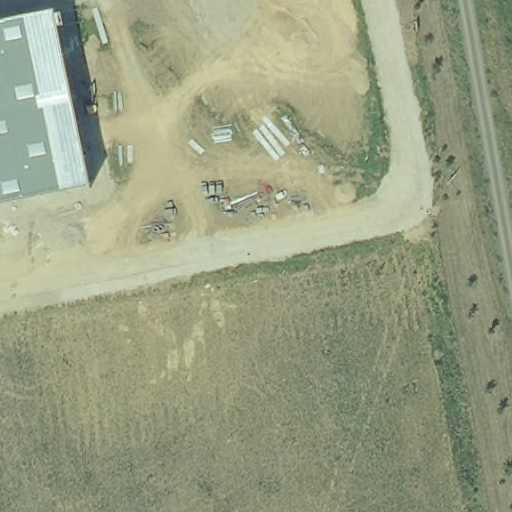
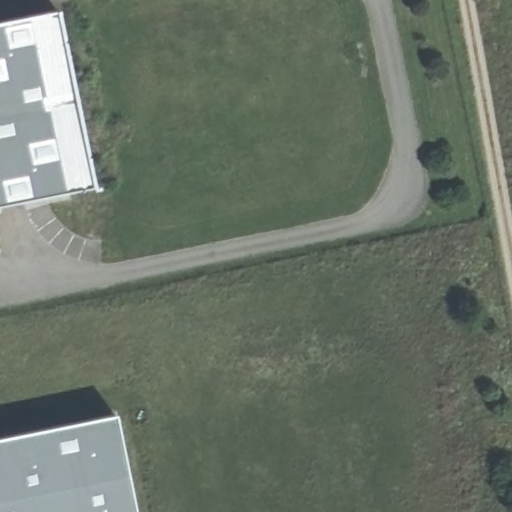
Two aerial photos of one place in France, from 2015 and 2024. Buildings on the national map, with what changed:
unchanged [(89,184),(0,203),(0,22),(54,11),(89,184)]
new [(134,512),(0,512),(0,437),(114,414),(134,512)]

